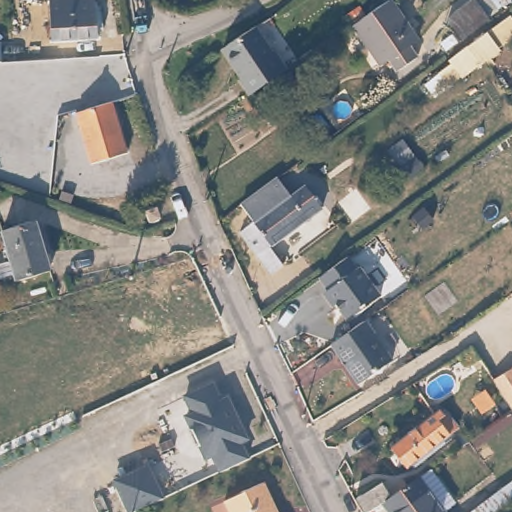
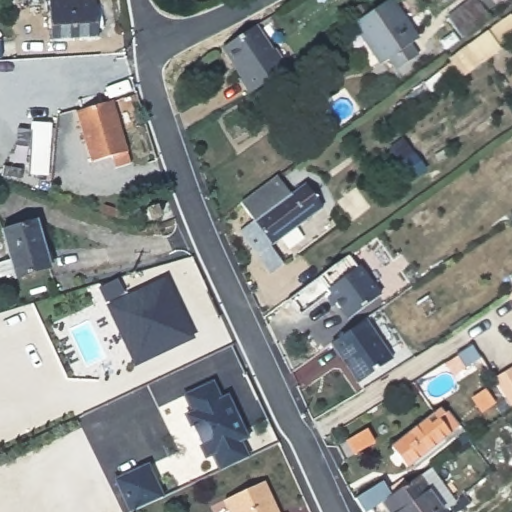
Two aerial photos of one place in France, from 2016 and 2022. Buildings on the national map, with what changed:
unchanged [(102,38),(56,41),(54,0),(100,0),(102,38)]
unchanged [(511,1),(461,39),(445,19),(470,0),(476,0),(477,1),(478,0),(511,0),(511,1)]
unchanged [(422,46),(414,51),(422,62),(401,76),(394,65),(387,70),(360,29),(395,5),(422,46)]
unchanged [(510,16),(512,17),(512,39),(462,78),(449,60),(510,16)]
unchanged [(274,59),(277,57),(286,70),(249,95),(240,81),(242,79),(222,50),(254,29),(274,59)]
unchanged [(127,154),(91,164),(76,114),(112,103),(127,154)]
unchanged [(300,187),(314,206),(303,214),(306,219),(256,256),(238,231),(252,221),(240,204),(276,177),(289,195),(300,187)]
unchanged [(15,279),(1,232),(36,222),(49,269),(15,279)]
unchanged [(352,257),(361,269),(363,268),(364,269),(384,297),(351,321),(331,293),(330,292),(332,290),(323,278),(352,257)]
demolished [(189,288),(142,310),(135,296),(181,273),(189,288)]
new [(98,290),(117,279),(125,296),(165,277),(195,339),(135,367),(106,306),(98,290)]
unchanged [(366,322),(392,358),(394,361),(362,384),(359,381),(334,345),(366,322)]
unchanged [(479,359),(464,369),(456,356),(471,346),(479,359)]
unchanged [(512,372),(512,403),(498,381),(512,372)]
unchanged [(220,399),(231,395),(251,440),(241,445),(248,456),(218,472),(212,457),(205,460),(186,416),(192,412),(183,394),(215,382),(220,399)]
unchanged [(443,416),(447,414),(457,427),(405,468),(390,448),(439,410),(443,416)]
unchanged [(130,512),(127,512),(114,480),(151,463),(164,498),(130,512)]
unchanged [(445,512),(388,512),(381,503),(368,512),(362,512),(354,500),(381,483),(390,496),(430,469),(455,504),(445,512)]
demolished [(512,482),(512,499),(508,502),(500,491),(512,482)]
unchanged [(278,512),(229,512),(224,502),(264,483),(278,512)]

